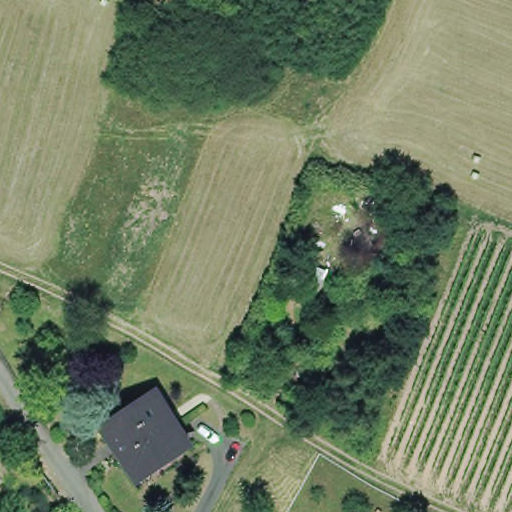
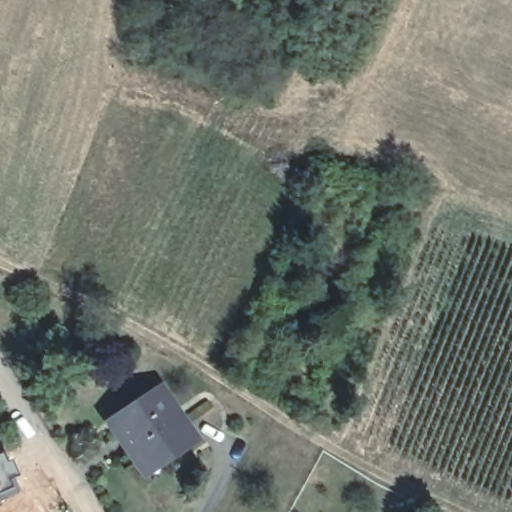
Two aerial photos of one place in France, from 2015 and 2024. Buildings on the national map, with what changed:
unchanged [(130,468),(103,428),(152,395),(183,442),(185,445),(180,448),(150,468),(136,477),(130,468)]
new [(15,476),(10,478),(17,492),(0,500),(0,454),(2,453),(15,476)]

